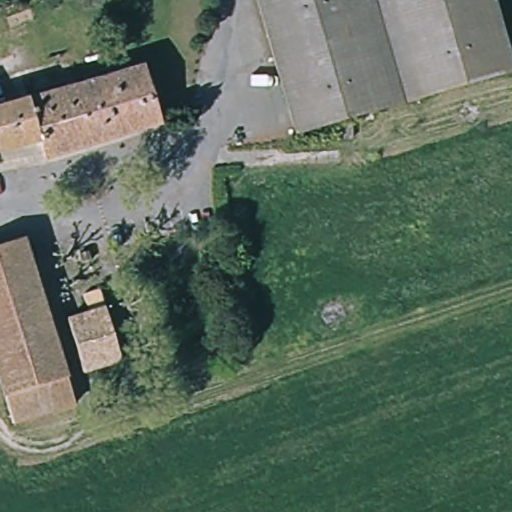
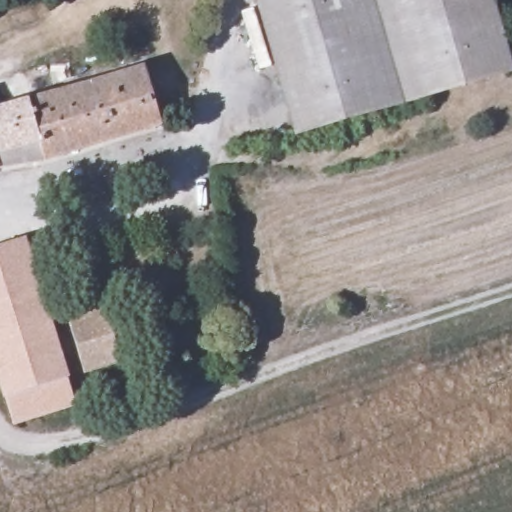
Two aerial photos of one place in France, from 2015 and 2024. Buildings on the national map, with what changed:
unchanged [(253,0),(487,0),(508,72),(293,135),(253,0)]
unchanged [(35,158),(0,164),(0,103),(142,66),(158,121),(35,158)]
unchanged [(71,401),(8,420),(0,394),(0,240),(20,233),(71,401)]
unchanged [(88,251),(91,261),(82,264),(79,253),(88,251)]
unchanged [(84,310),(78,291),(95,286),(118,358),(78,370),(62,317),(84,310)]

